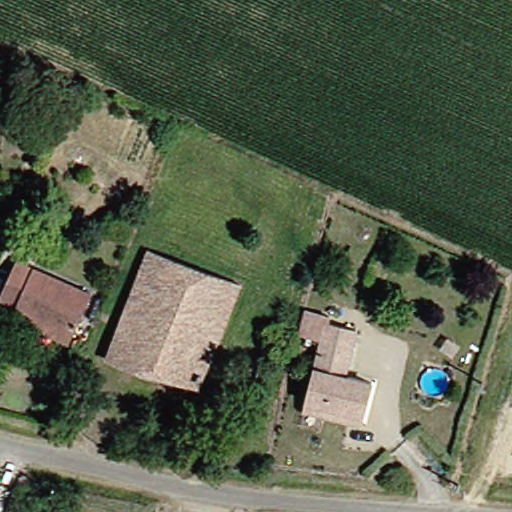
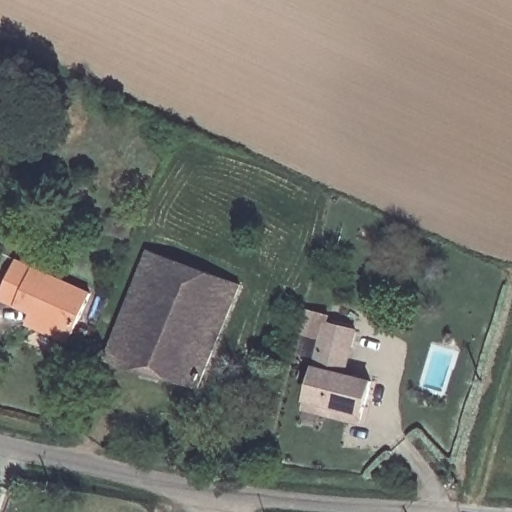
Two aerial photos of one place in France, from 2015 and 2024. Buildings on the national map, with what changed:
unchanged [(193,385),(96,354),(137,250),(236,283),(193,385)]
unchanged [(0,300),(0,276),(6,257),(83,288),(75,313),(18,289),(10,305),(0,300)]
unchanged [(20,326),(25,318),(26,312),(10,305),(18,289),(75,313),(65,337),(61,345),(20,326)]
unchanged [(299,400),(305,364),(317,319),(350,326),(341,370),(363,378),(353,421),(298,407),(299,400)]
unchanged [(206,413),(200,435),(181,429),(187,407),(205,413),(206,413)]
unchanged [(246,454),(215,449),(224,408),(255,416),(246,454)]

